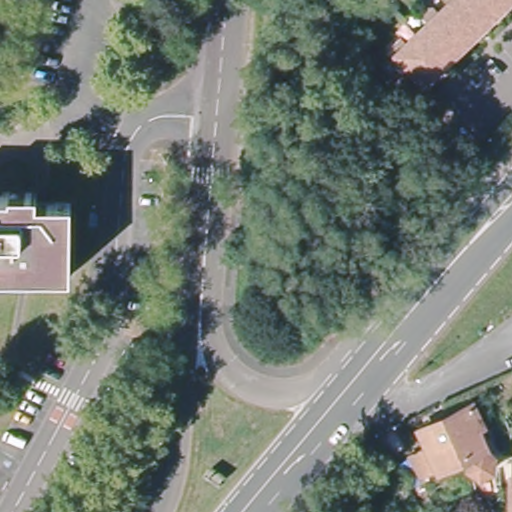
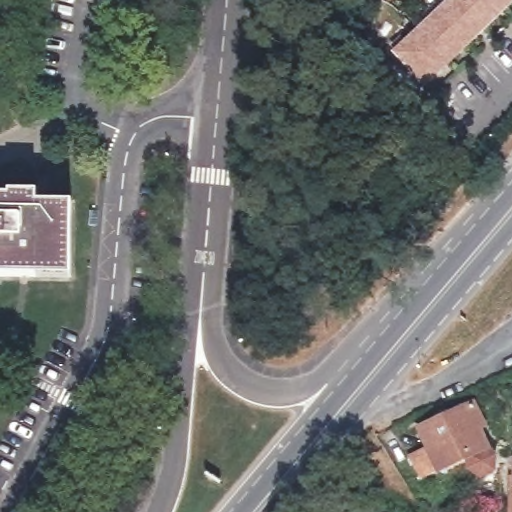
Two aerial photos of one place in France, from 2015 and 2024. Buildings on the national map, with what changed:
unchanged [(428,81),(400,52),(400,51),(395,45),(405,36),(410,42),(433,20),(428,14),(437,6),(442,11),(453,1),(452,0),(512,0),(512,1),(450,60),(428,81)]
unchanged [(32,205),(69,205),(67,278),(0,278),(0,196),(32,196),(32,205)]
unchanged [(441,464),(425,471),(411,448),(430,439),(421,422),(475,398),(484,419),(476,422),(494,446),(494,460),(482,465),(471,457),(444,469),(441,464)]
unchanged [(512,455),(512,512),(509,512),(510,455),(512,455)]

